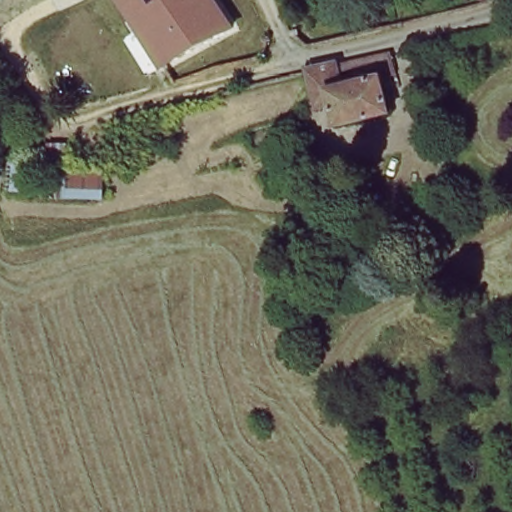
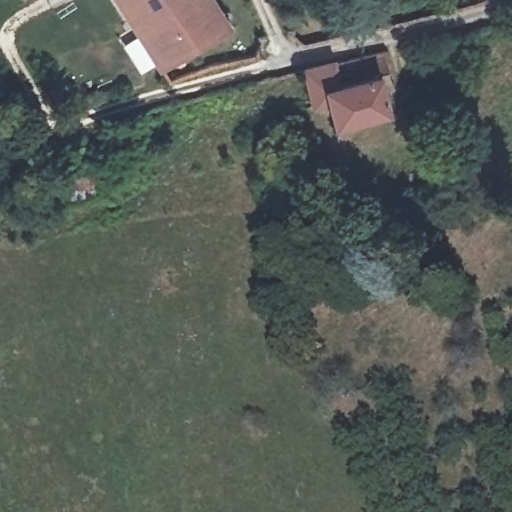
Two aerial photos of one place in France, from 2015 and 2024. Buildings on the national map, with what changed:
unchanged [(118,0),(213,0),(227,22),(160,65),(118,0)]
unchanged [(337,83),(379,72),(389,112),(335,126),(328,101),(312,105),(301,68),(330,60),(337,83)]
unchanged [(2,164),(42,165),(41,141),(65,140),(66,168),(99,168),(99,195),(0,192),(0,178),(2,164)]

